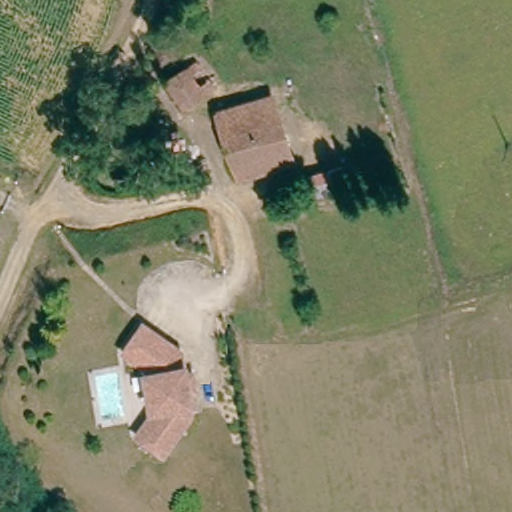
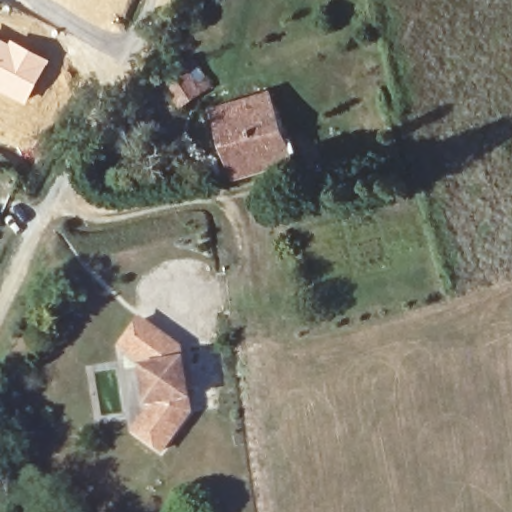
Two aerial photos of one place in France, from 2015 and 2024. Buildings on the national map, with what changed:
new [(10,37),(50,59),(24,104),(0,91),(0,37),(8,41),(10,37)]
unchanged [(167,81),(204,63),(223,95),(187,114),(167,81)]
unchanged [(270,95),(293,161),(236,177),(215,112),(270,95)]
unchanged [(161,448),(135,428),(155,403),(148,366),(120,341),(143,317),(180,348),(183,367),(192,365),(195,385),(187,387),(191,410),(161,448)]

